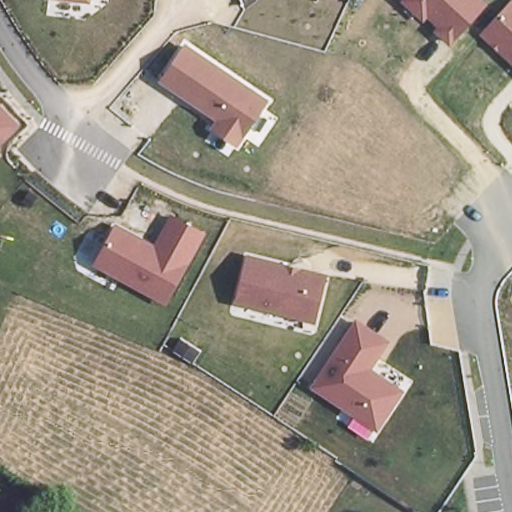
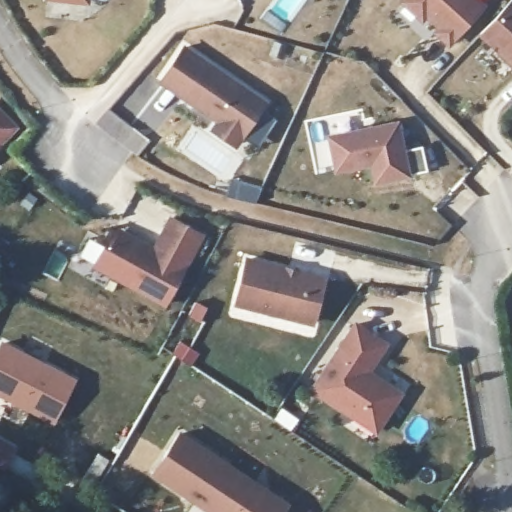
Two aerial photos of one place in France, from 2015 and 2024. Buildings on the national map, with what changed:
unchanged [(61,0),(90,0),(90,3),(61,0)]
unchanged [(450,46),(432,31),(436,26),(427,17),(423,21),(400,1),(401,0),(482,0),(486,3),(450,46)]
unchanged [(512,0),(512,65),(479,35),(512,0)]
unchanged [(237,148),(209,130),(214,121),(158,82),(185,45),(267,101),(237,148)]
unchanged [(18,127),(0,145),(0,109),(18,127)]
new [(370,165),(334,171),(327,134),(400,119),(411,176),(373,183),(370,165)]
unchanged [(112,225),(151,245),(168,216),(204,235),(164,305),(91,265),(112,225)]
unchanged [(326,276),(315,325),(233,306),(245,256),(326,276)]
unchanged [(377,433),(310,389),(355,321),(389,343),(372,370),(403,392),(377,433)]
new [(0,392),(0,346),(2,343),(72,380),(51,419),(0,392)]
new [(179,429),(290,502),(284,512),(206,512),(150,475),(179,429)]

